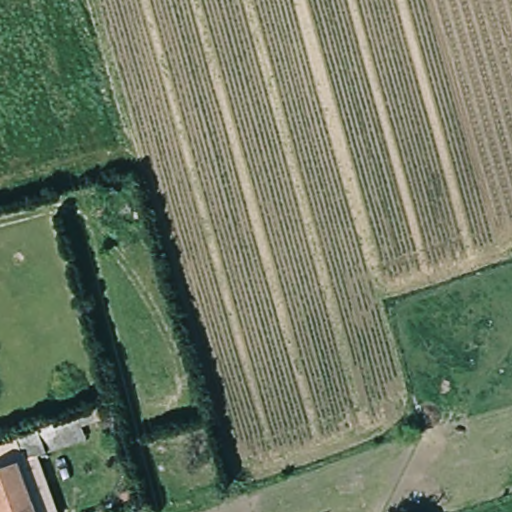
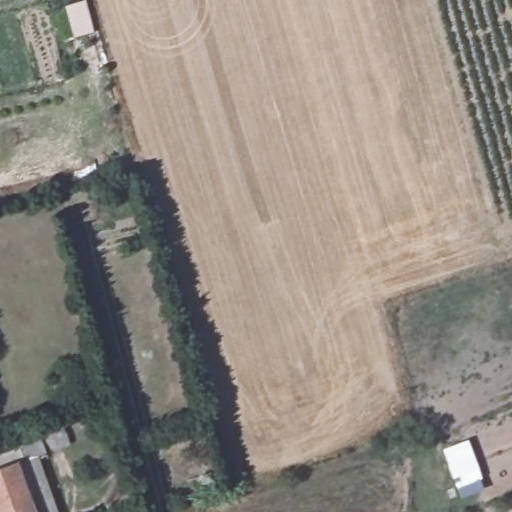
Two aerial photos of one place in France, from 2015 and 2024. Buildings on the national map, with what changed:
unchanged [(38,430),(47,453),(19,462),(23,476),(33,473),(39,494),(30,498),(35,512),(0,512),(0,443),(38,430)]
new [(488,490),(462,500),(442,449),(468,439),(488,490)]

